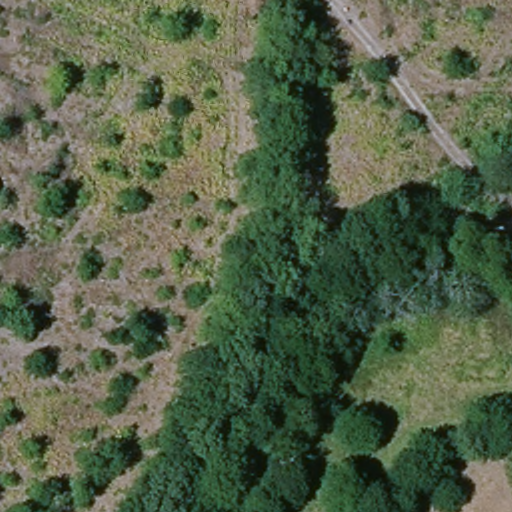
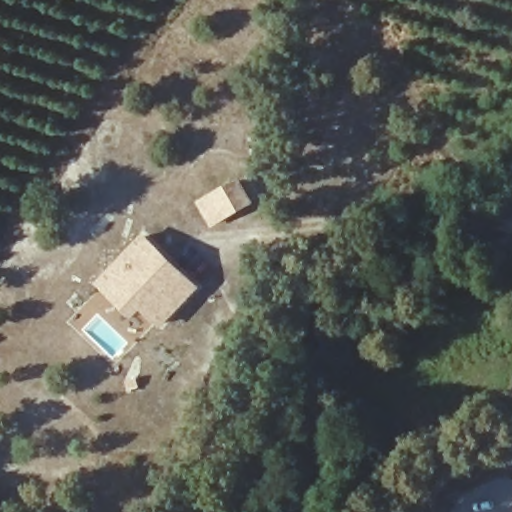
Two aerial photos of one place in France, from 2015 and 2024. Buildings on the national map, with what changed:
new [(238,182),(250,204),(224,218),(212,225),(199,203),(212,196),(238,182)]
new [(142,310),(134,319),(96,283),(144,234),(199,289),(160,328),(142,310)]

